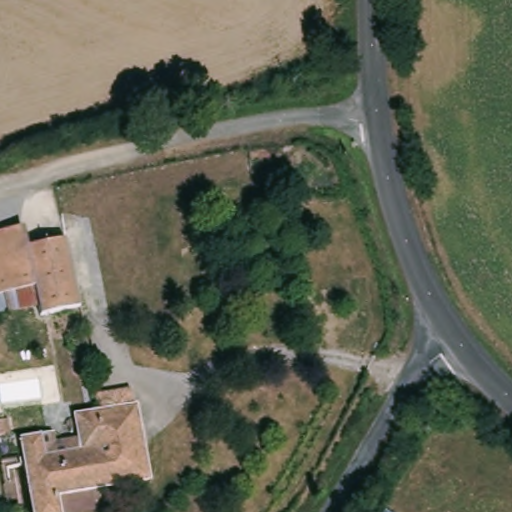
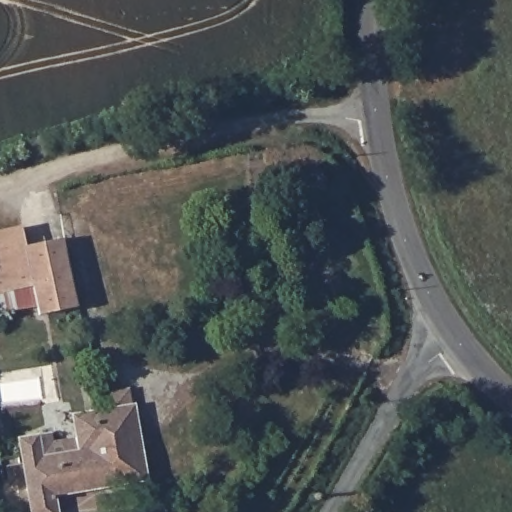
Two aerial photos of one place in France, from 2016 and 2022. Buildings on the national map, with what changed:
unchanged [(26,249),(34,287),(0,295),(0,233),(20,230),(26,249)]
unchanged [(64,244),(67,256),(79,307),(40,315),(34,287),(26,249),(64,244)]
unchanged [(49,444),(83,438),(79,416),(96,413),(101,412),(102,412),(131,407),(144,481),(116,485),(113,486),(92,490),(51,496),(54,512),(29,512),(17,442),(35,439),(48,437),(49,444)]
unchanged [(9,433),(0,434),(0,420),(5,419),(9,433)]

